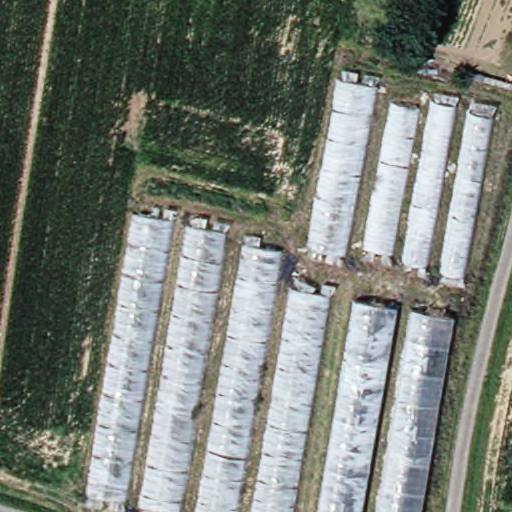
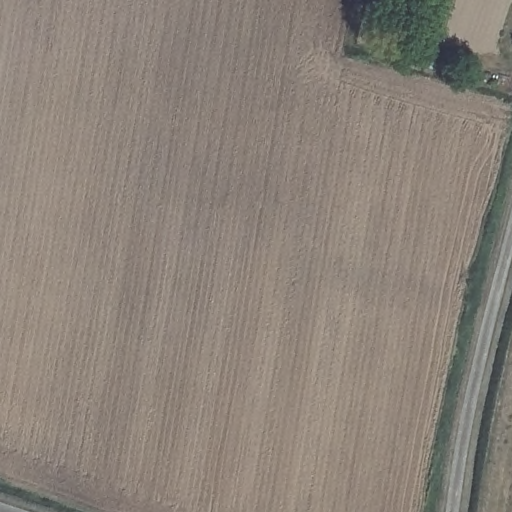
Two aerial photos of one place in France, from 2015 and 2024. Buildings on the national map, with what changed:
demolished [(340,66),(382,72),(347,256),(307,251),(340,66)]
demolished [(395,93),(433,100),(436,88),(500,101),(467,279),(364,253),(395,93)]
demolished [(140,202),(283,235),(278,282),(334,292),(297,512),(122,512),(86,502),(140,202)]
demolished [(458,311),(422,512),(319,512),(359,293),(458,311)]

